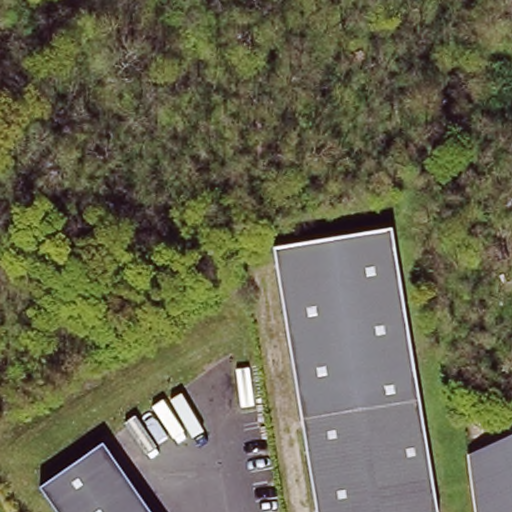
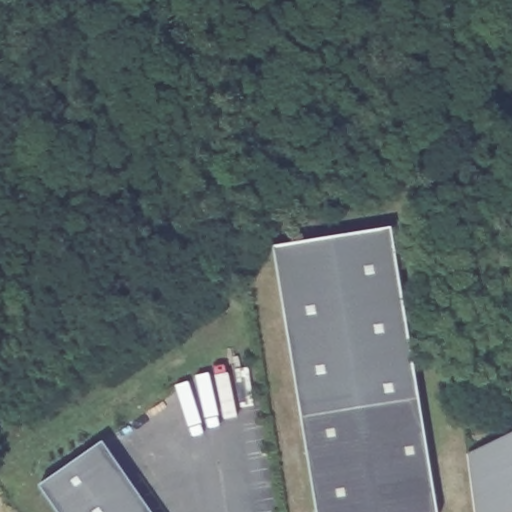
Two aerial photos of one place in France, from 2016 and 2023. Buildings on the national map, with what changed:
unchanged [(271,248),(389,231),(415,398),(295,418),(271,248)]
unchanged [(415,398),(428,491),(431,512),(311,512),(295,418),(415,398)]
unchanged [(512,512),(473,512),(466,455),(512,435),(512,512)]
unchanged [(149,512),(55,512),(39,488),(102,445),(149,512)]

